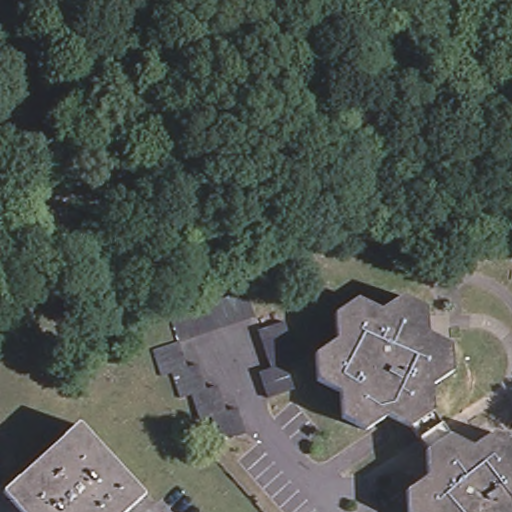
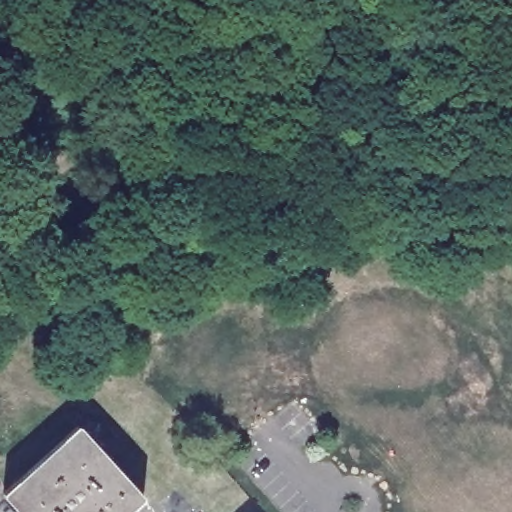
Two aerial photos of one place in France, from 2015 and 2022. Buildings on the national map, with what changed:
demolished [(192,310),(205,305),(219,301),(232,298),(245,293),(253,320),(252,320),(239,324),(226,328),(215,331),(200,336),(187,340),(175,343),(169,316),(180,313),(192,310)]
demolished [(312,353),(333,338),(332,312),(354,298),(375,310),(395,298),(422,311),(425,336),(449,350),(450,376),(430,388),(430,412),(408,428),(387,418),(365,431),(338,420),(338,392),(314,380),(312,353)]
demolished [(270,385),(267,370),(275,368),(272,355),(268,343),(265,332),(291,323),(294,335),(297,347),(301,360),(291,363),(295,378),(299,392),(274,400),(270,385)]
demolished [(175,385),(171,372),(160,375),(156,362),(152,351),(175,343),(180,355),(184,368),(194,365),(199,377),(204,390),(214,387),(219,401),(224,415),(235,411),(239,423),(244,436),(219,442),(216,431),(212,419),(201,422),(196,408),(192,395),(180,398),(175,385)]
unchanged [(77,426),(145,500),(133,512),(25,512),(7,492),(77,426)]
demolished [(490,436),(512,446),(512,512),(407,512),(406,490),(426,476),(425,451),(447,438),(470,449),(490,436)]

